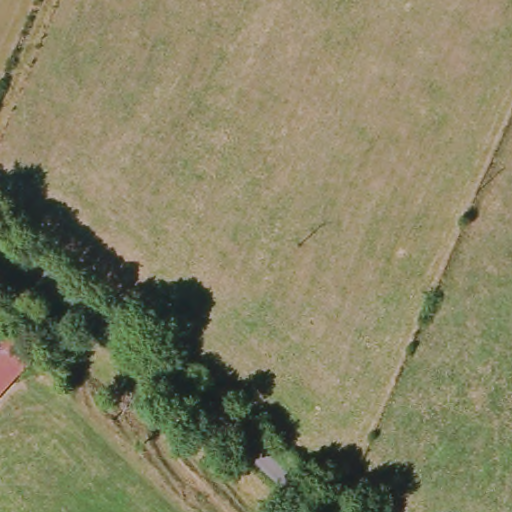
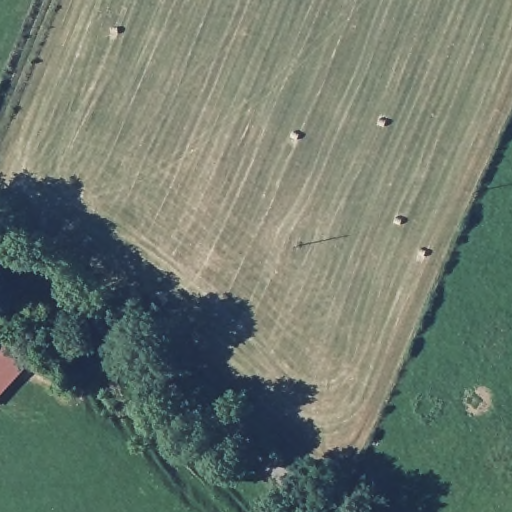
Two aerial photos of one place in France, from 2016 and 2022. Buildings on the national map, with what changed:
unchanged [(29,363),(0,392),(0,331),(29,363)]

